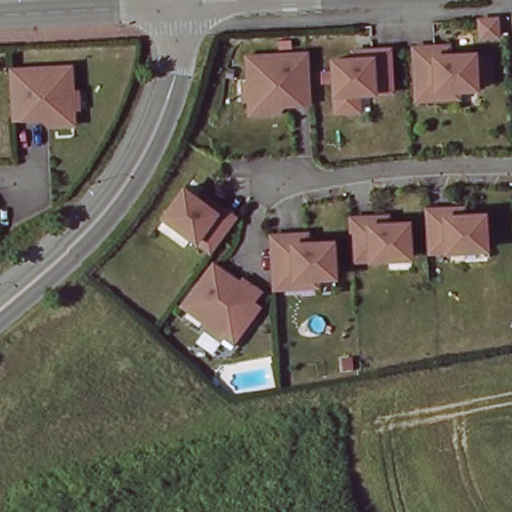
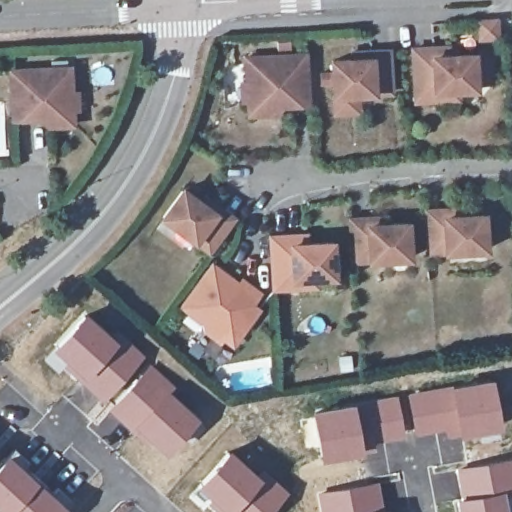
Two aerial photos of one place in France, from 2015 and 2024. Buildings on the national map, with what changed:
unchanged [(495,20),(497,37),(480,38),(479,30),(479,21),(495,20)]
unchanged [(432,94),(411,95),(408,44),(429,43),(442,42),(443,51),(469,49),(471,83),(452,84),(453,93),(432,94)]
unchanged [(353,53),(370,52),(388,51),(390,92),(335,95),(333,61),(353,60),(353,53)]
unchanged [(243,83),(248,82),(247,58),(305,55),(308,104),(275,105),(276,113),(250,114),(249,99),(244,99),(243,83)]
unchanged [(77,109),(72,109),(73,124),(47,125),(47,118),(14,120),(12,71),(70,68),(71,92),(76,92),(77,109)]
unchanged [(184,190),(201,202),(205,197),(219,207),(233,218),(209,251),(164,217),(184,190)]
unchanged [(462,209),(463,216),(484,215),(485,249),(429,252),(427,211),(445,210),(462,209)]
unchanged [(387,218),(387,225),(408,223),(410,257),(353,260),(351,220),(369,219),(387,218)]
unchanged [(295,287),(274,288),(274,274),(272,237),(293,236),(306,235),(306,244),(332,242),(334,276),(316,277),(316,286),(295,287)]
unchanged [(206,329),(209,325),(183,306),(213,266),(239,285),(242,281),(259,293),(251,304),(258,308),(248,321),(232,343),(223,336),(220,340),(206,329)]
new [(86,313),(124,342),(126,339),(145,355),(101,400),(64,367),(58,373),(44,360),(86,313)]
new [(150,364),(176,386),(171,391),(200,416),(165,454),(110,412),(150,364)]
new [(494,377),(500,427),(460,435),(450,384),(494,377)]
new [(450,384),(460,435),(439,439),(439,432),(415,436),(407,392),(450,384)]
new [(398,394),(404,436),(380,440),(373,399),(398,394)]
new [(356,402),(364,449),(321,459),(311,410),(356,402)]
new [(263,475),(267,471),(289,491),(269,512),(217,512),(204,501),(206,499),(197,490),(230,449),(263,475)]
new [(68,506),(62,512),(0,512),(0,462),(9,453),(68,506)]
new [(512,457),(512,494),(506,495),(506,488),(459,496),(455,467),(512,457)]
new [(384,509),(371,512),(321,512),(317,492),(379,481),(384,509)]
new [(506,488),(506,495),(508,512),(457,512),(455,497),(459,496),(506,488)]
new [(389,508),(390,512),(371,512),(384,509),(389,508)]

